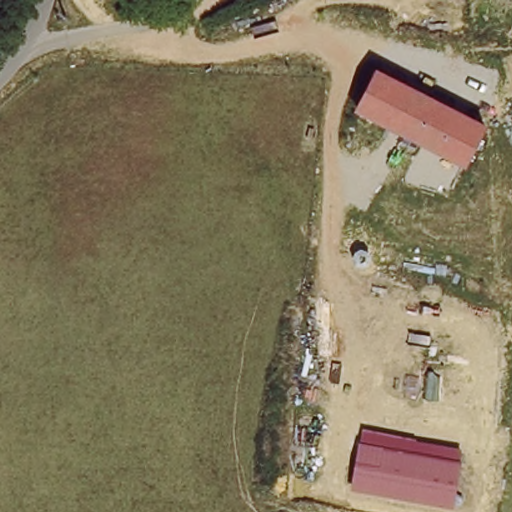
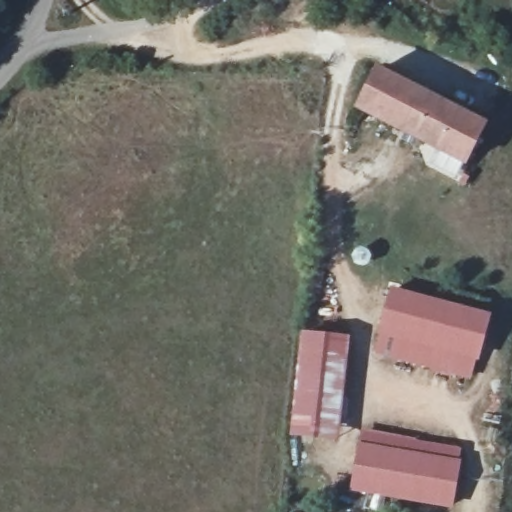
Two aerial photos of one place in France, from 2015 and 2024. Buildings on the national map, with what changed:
unchanged [(376,67),(488,125),(465,169),(355,110),(376,67)]
new [(378,336),(390,288),(492,316),(479,362),(473,381),(376,355),(378,336)]
new [(291,437),(303,332),(353,337),(339,441),(291,437)]
unchanged [(464,448),(454,508),(351,491),(363,430),(464,448)]

